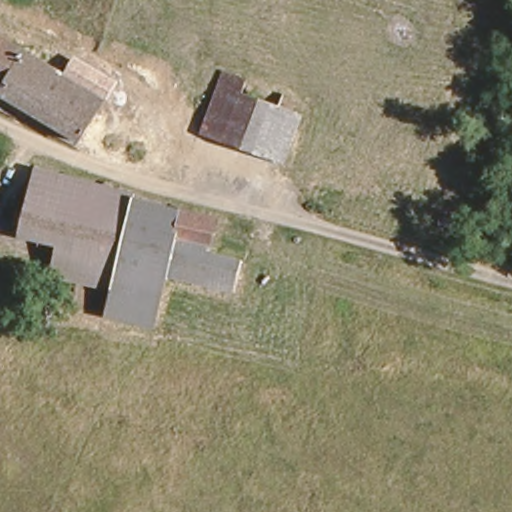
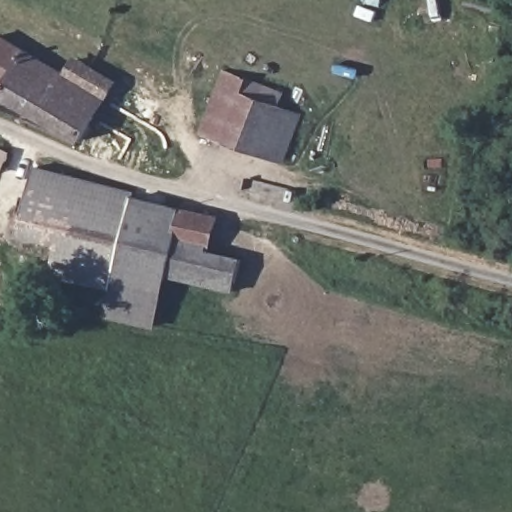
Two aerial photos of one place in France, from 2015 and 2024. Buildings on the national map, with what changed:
unchanged [(1,89),(9,74),(0,69),(0,29),(70,69),(80,53),(118,76),(83,137),(1,89)]
unchanged [(201,128),(217,86),(236,94),(241,81),(281,97),(277,110),(295,117),(280,160),(201,128)]
unchanged [(142,195),(211,215),(218,217),(208,254),(240,263),(231,292),(164,274),(152,324),(151,328),(106,317),(108,311),(112,289),(52,275),(59,247),(20,237),(37,167),(128,190),(142,195)]

